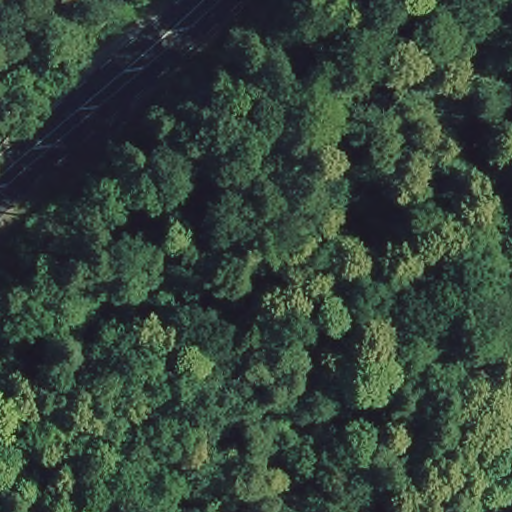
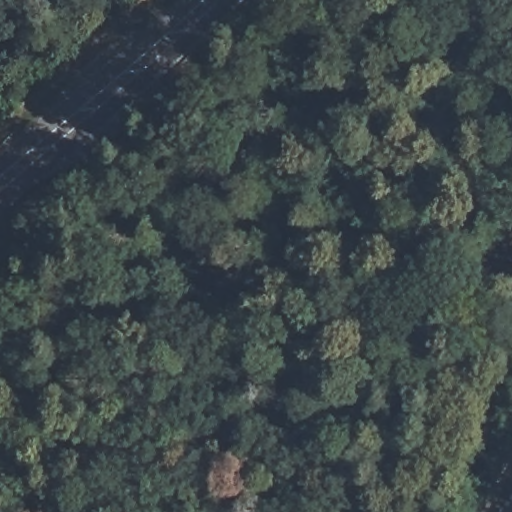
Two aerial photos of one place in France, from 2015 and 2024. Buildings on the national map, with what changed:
[]

